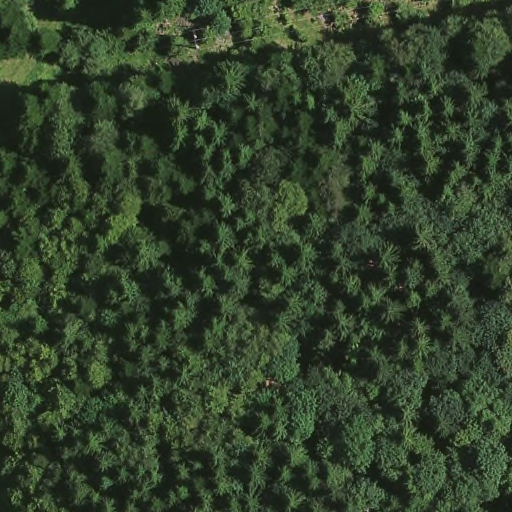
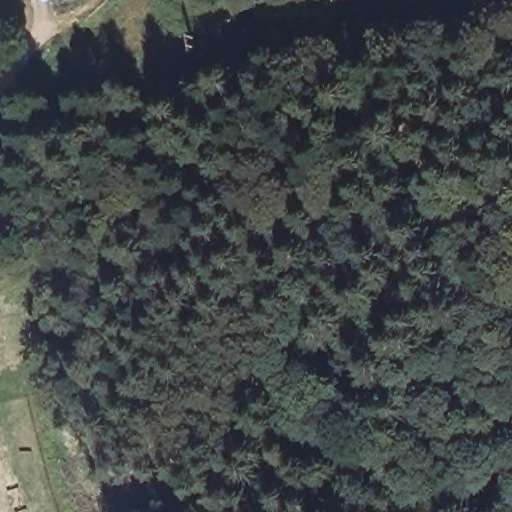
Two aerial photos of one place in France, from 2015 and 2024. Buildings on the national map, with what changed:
unchanged [(46,2),(45,0),(49,0),(46,2)]

